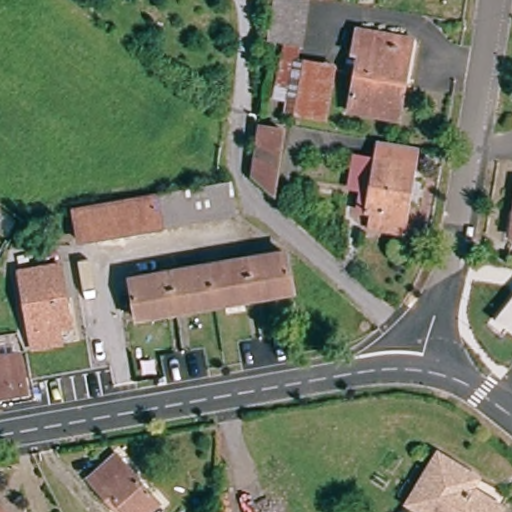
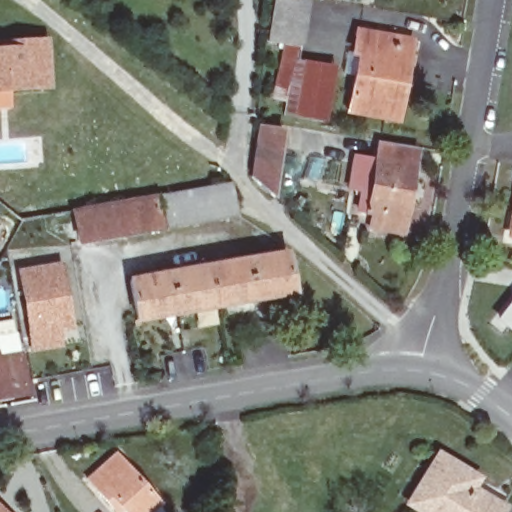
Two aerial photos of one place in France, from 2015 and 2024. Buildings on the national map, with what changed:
unchanged [(302,50),(271,45),(276,0),(283,0),(307,4),(302,50)]
unchanged [(305,0),(319,0),(319,2),(305,0)]
unchanged [(417,37),(416,46),(411,45),(403,83),(408,84),(402,117),(355,108),(366,50),(359,49),(363,28),(417,37)]
new [(49,36),(53,88),(0,93),(0,39),(49,36)]
unchanged [(325,119),(272,109),(282,57),(333,66),(325,119)]
unchanged [(253,181),(258,150),(262,127),(286,132),(282,155),(273,201),(253,181)]
unchanged [(412,154),(410,170),(415,171),(406,225),(400,225),(397,237),(372,234),(375,219),(358,216),(361,196),(349,195),(355,164),(376,167),(379,150),(412,154)]
new [(2,184),(0,187),(0,182),(2,184)]
unchanged [(234,219),(77,234),(74,205),(232,190),(234,219)]
unchanged [(512,224),(512,234),(510,233),(512,224)]
unchanged [(175,275),(214,269),(289,256),(295,290),(257,297),(180,310),(177,311),(142,317),(137,282),(175,275)]
unchanged [(70,325),(57,326),(58,341),(31,345),(22,267),(62,262),(70,325)]
unchanged [(512,309),(512,327),(503,320),(512,309)]
unchanged [(22,352),(27,388),(0,393),(0,356),(22,352)]
unchanged [(163,503),(154,512),(132,512),(130,510),(128,512),(122,512),(94,482),(120,456),(163,503)]
unchanged [(410,503),(441,457),(478,480),(471,490),(502,510),(500,512),(423,512),(410,503)]

